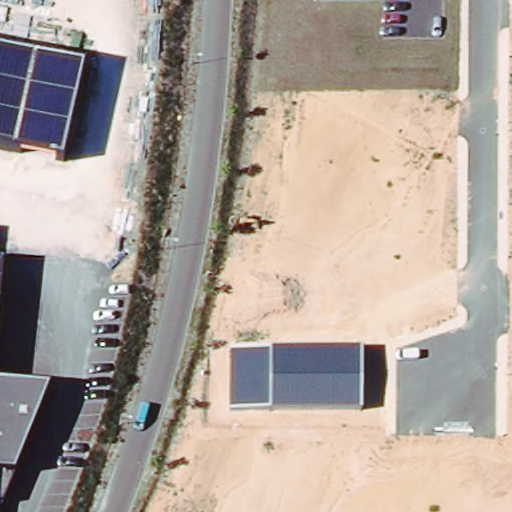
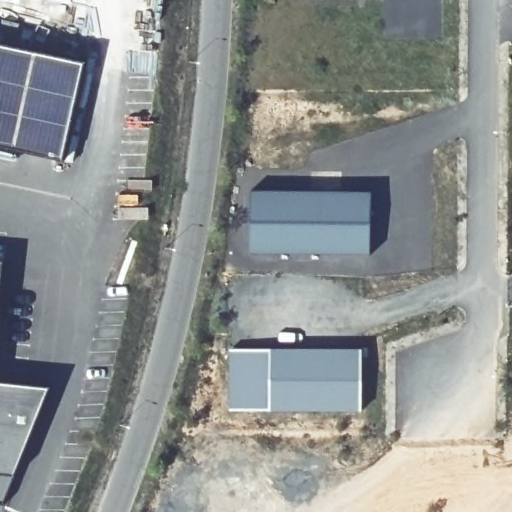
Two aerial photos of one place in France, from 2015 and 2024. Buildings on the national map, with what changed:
unchanged [(0,46),(83,63),(63,159),(0,147),(0,46)]
new [(250,191),(370,192),(370,255),(249,253),(250,191)]
unchanged [(0,300),(0,261),(4,261),(0,300)]
unchanged [(362,349),(361,410),(231,411),(230,350),(362,349)]
unchanged [(18,474),(2,508),(0,508),(0,381),(51,386),(18,474)]

